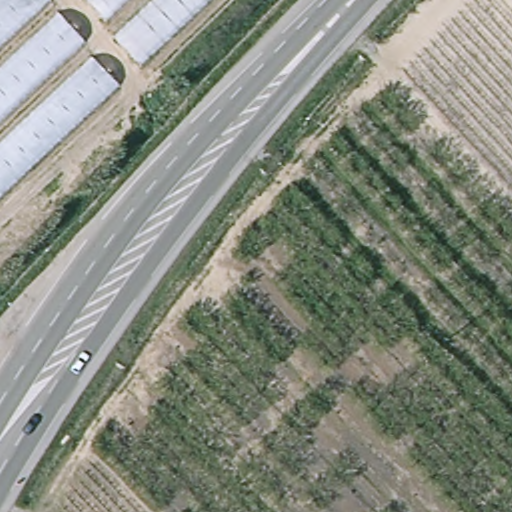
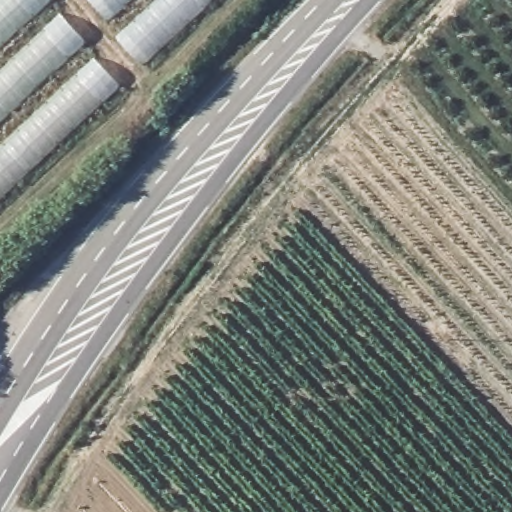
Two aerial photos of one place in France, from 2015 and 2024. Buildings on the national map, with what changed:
unchanged [(0,198),(0,0),(55,0),(118,81),(0,198)]
unchanged [(140,66),(89,0),(207,0),(140,66)]

